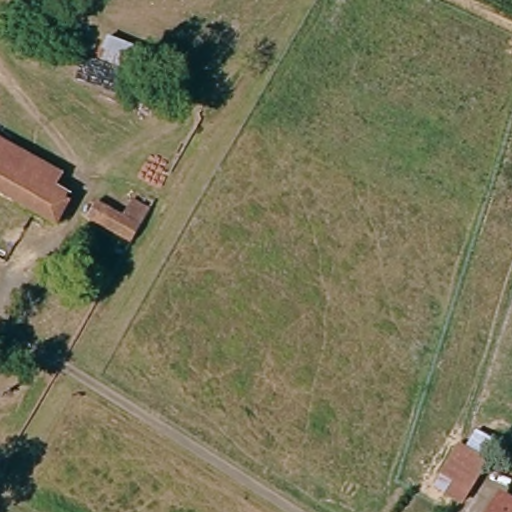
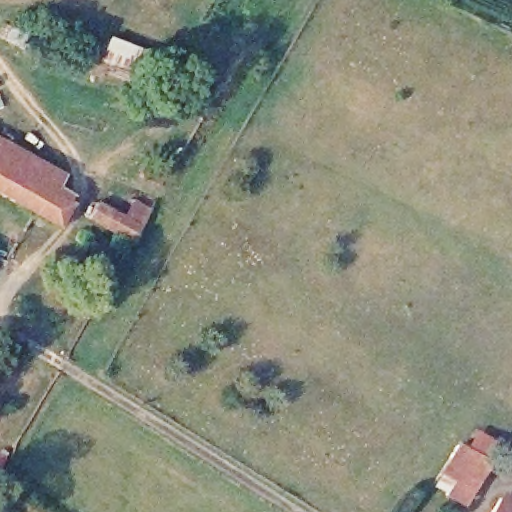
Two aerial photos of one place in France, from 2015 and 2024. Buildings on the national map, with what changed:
unchanged [(58,195),(76,206),(65,227),(46,217),(0,194),(0,140),(68,175),(58,195)]
unchanged [(86,217),(95,205),(105,211),(117,192),(128,199),(134,190),(153,201),(128,242),(86,217)]
unchanged [(0,245),(0,234),(5,237),(0,245)]
unchanged [(0,267),(0,254),(5,258),(0,267)]
unchanged [(446,470),(462,442),(468,446),(488,460),(463,497),(448,487),(454,477),(449,473),(446,470)]
unchanged [(512,502),(512,512),(483,512),(497,492),(512,502)]

